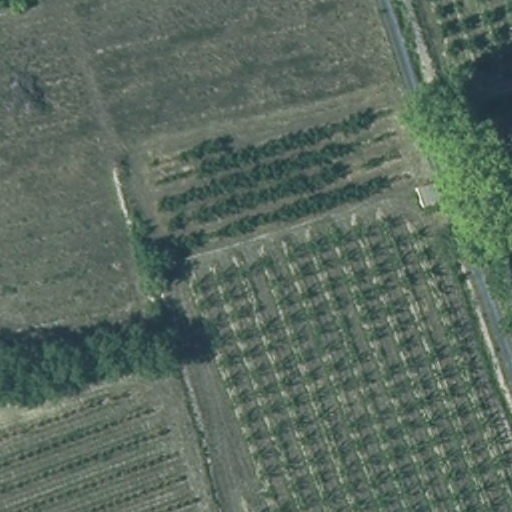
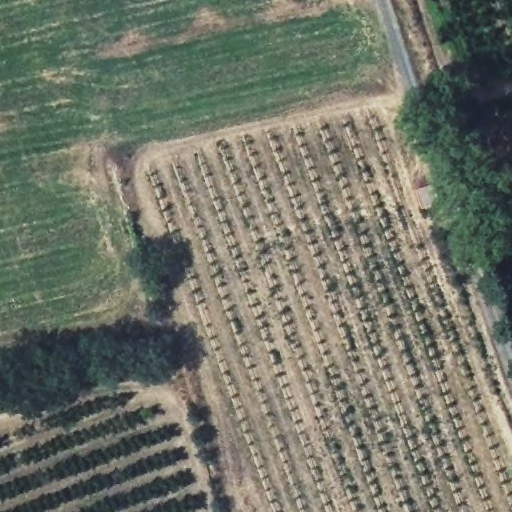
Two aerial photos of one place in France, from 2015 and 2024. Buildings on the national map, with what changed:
unchanged [(415,194),(415,214),(400,214),(395,189),(415,194)]

